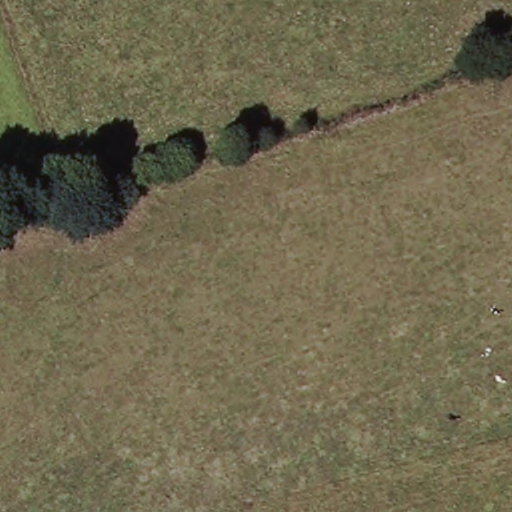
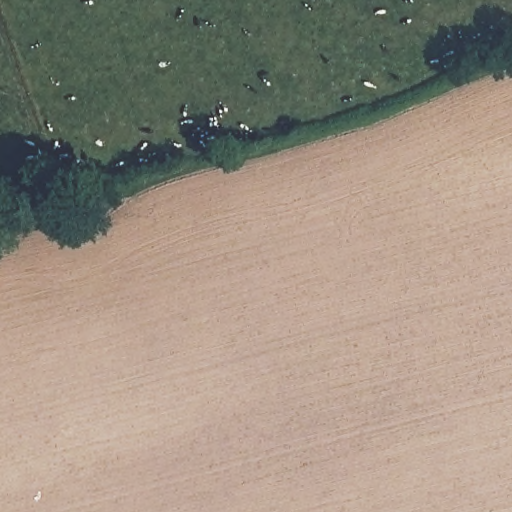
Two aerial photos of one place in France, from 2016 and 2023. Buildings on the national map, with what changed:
[]

